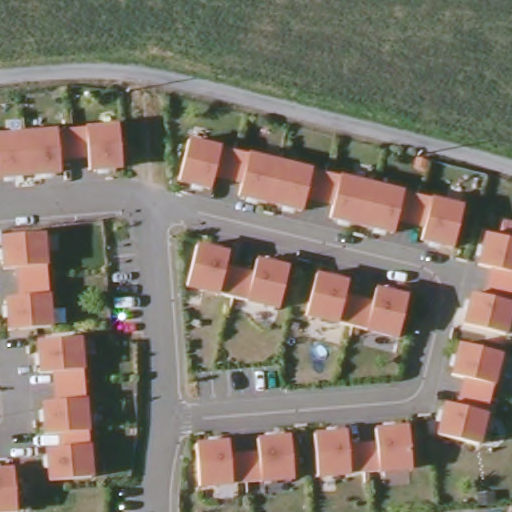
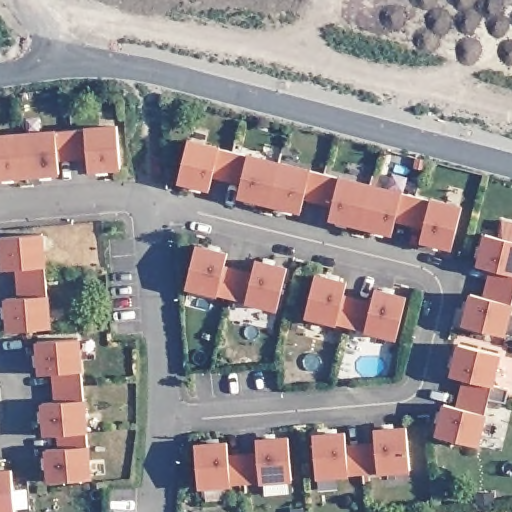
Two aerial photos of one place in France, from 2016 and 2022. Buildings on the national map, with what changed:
unchanged [(85,127),(114,125),(116,125),(120,166),(118,166),(88,169),(86,155),(72,156),(70,128),(85,127)]
unchanged [(58,157),(59,171),(26,174),(23,132),(55,130),(70,128),(72,156),(58,157)]
unchanged [(26,174),(0,176),(0,134),(23,132),(26,174)]
unchanged [(228,171),(226,178),(212,174),(209,188),(178,180),(188,140),(219,147),(233,151),(228,171)]
unchanged [(270,199),(270,203),(237,195),(240,181),(226,178),(228,171),(233,151),(280,162),(270,199)]
unchanged [(321,187),(318,200),(303,197),(300,210),(270,203),(270,199),(280,162),(325,173),(321,187)]
unchanged [(365,205),(360,225),(328,217),(332,204),(318,200),(321,187),(325,173),(370,185),(365,205)]
unchanged [(415,197),(409,223),(395,219),(391,233),(360,225),(365,205),(370,185),(415,196),(415,197)]
unchanged [(430,199),(461,207),(451,247),(420,240),(423,226),(416,225),(409,223),(415,197),(415,196),(430,199)]
unchanged [(17,281),(16,266),(2,267),(0,235),(41,232),(44,264),(45,279),(17,281)]
unchanged [(476,266),(484,234),(512,241),(512,289),(486,283),(490,269),(476,266)]
unchanged [(231,296),(217,293),(185,285),(195,245),(227,252),(223,266),(237,269),(231,296)]
unchanged [(251,273),(255,259),(286,267),(276,307),(245,300),(231,296),(237,269),(251,273)]
unchanged [(350,326),(305,314),(315,274),(346,282),(342,295),(356,298),(350,326)]
unchanged [(45,279),(49,325),(7,329),(5,296),(18,295),(17,281),(45,279)]
unchanged [(461,325),(469,294),(482,297),(486,283),(512,289),(512,295),(502,335),(461,325)]
unchanged [(371,302),(374,288),(405,296),(395,337),(364,329),(350,326),(356,298),(371,302)]
unchanged [(52,371),(39,371),(36,339),(78,336),(81,383),(54,385),(52,371)]
unchanged [(462,380),(449,377),(451,369),(456,346),(497,356),(494,368),(486,401),(465,396),(458,394),(462,380)]
unchanged [(57,432),(43,433),(41,401),(55,399),(54,385),(81,383),(83,397),(85,430),(57,432)]
unchanged [(482,415),(475,447),(434,437),(442,405),(455,409),(458,394),(465,396),(486,401),(482,415)]
unchanged [(372,443),(371,429),(404,426),(406,454),(407,468),(375,471),(361,472),(360,472),(359,455),(358,444),(372,443)]
unchanged [(85,430),(89,476),(47,479),(45,447),(58,446),(57,432),(85,430)]
unchanged [(359,455),(360,472),(314,475),(312,456),(310,434),(342,431),(344,445),(358,444),(359,455)]
unchanged [(256,452),(255,438),(287,436),(288,457),(290,477),(243,481),(241,457),(241,453),(256,452)]
unchanged [(241,457),(243,481),(197,485),(195,458),(193,443),(226,441),(227,454),(241,453),(241,457)]
unchanged [(10,467),(13,509),(0,510),(0,468),(10,467)]

